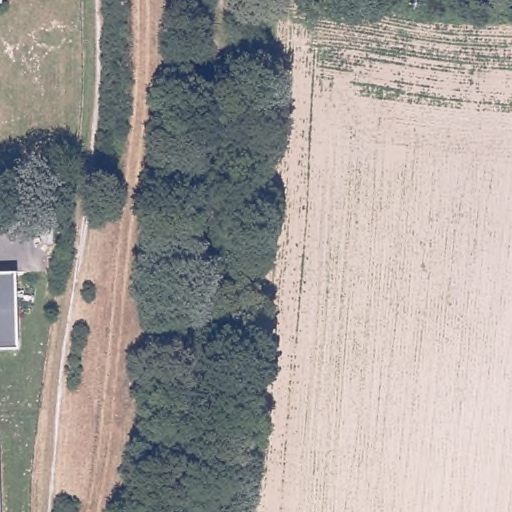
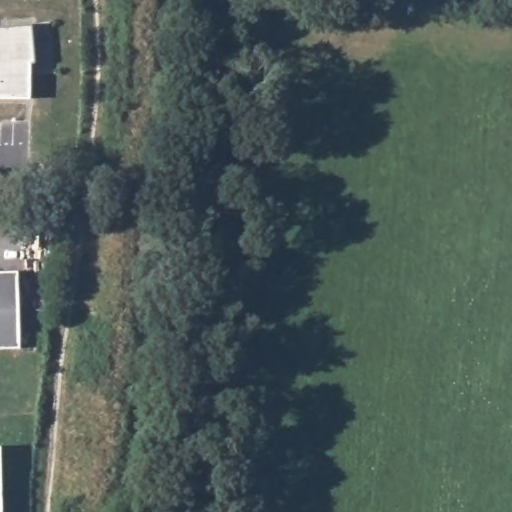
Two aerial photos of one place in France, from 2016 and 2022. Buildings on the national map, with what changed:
new [(34,63),(27,63),(26,98),(0,98),(0,27),(30,25),(34,63)]
unchanged [(19,349),(0,349),(0,270),(17,270),(19,349)]

